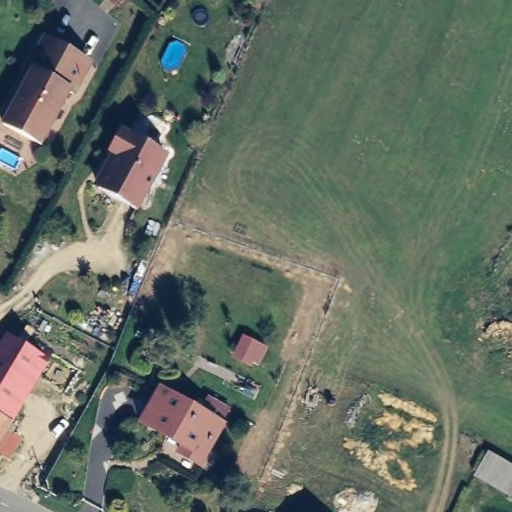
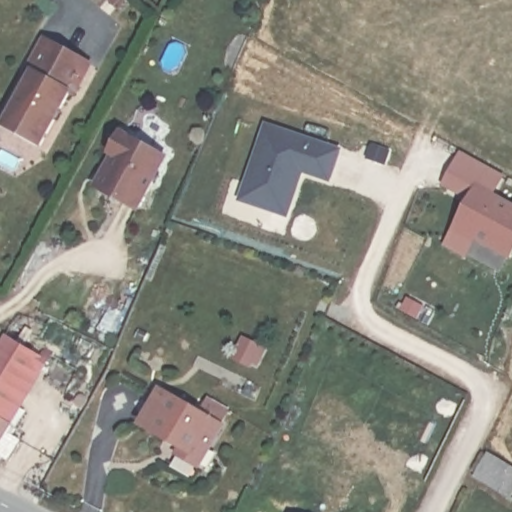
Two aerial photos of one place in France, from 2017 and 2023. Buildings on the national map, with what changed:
unchanged [(119,10),(108,0),(129,0),(119,10)]
unchanged [(73,91),(68,89),(40,141),(3,122),(33,70),(28,67),(44,37),(88,60),(73,91)]
new [(240,201),(266,123),(341,147),(331,181),(304,174),(289,217),(240,201)]
unchanged [(115,151),(111,149),(121,130),(169,155),(142,213),(97,188),(115,151)]
new [(469,199),(442,185),(461,151),(506,175),(495,193),(512,202),(512,256),(510,260),(477,241),(466,258),(444,245),(469,199)]
unchanged [(10,331),(49,352),(51,348),(86,370),(73,391),(39,371),(6,419),(13,423),(0,444),(0,347),(10,331)]
unchanged [(221,426),(196,466),(173,451),(178,444),(139,420),(160,387),(221,426)]
unchanged [(512,500),(473,477),(488,450),(512,465),(512,500)]

